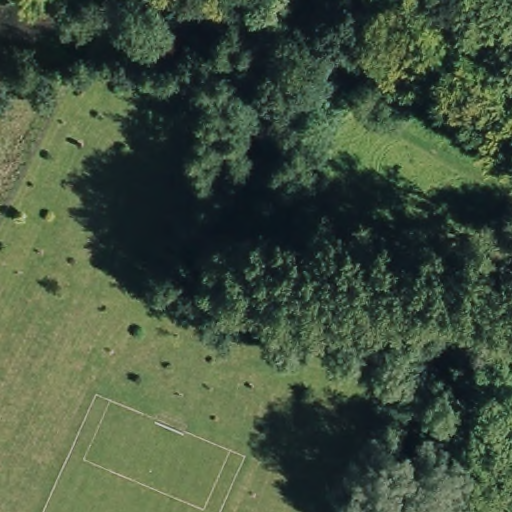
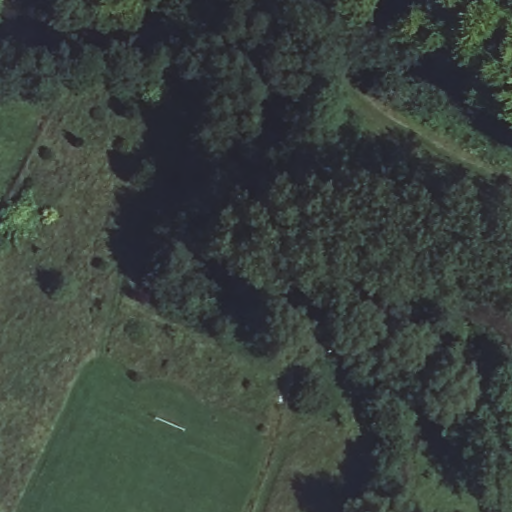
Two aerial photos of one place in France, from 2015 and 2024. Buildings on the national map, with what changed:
unchanged [(457,113),(453,121),(439,112),(443,105),(427,94),(424,100),(409,90),(412,85),(382,63),(419,6),(512,73),(512,151),(457,113)]

